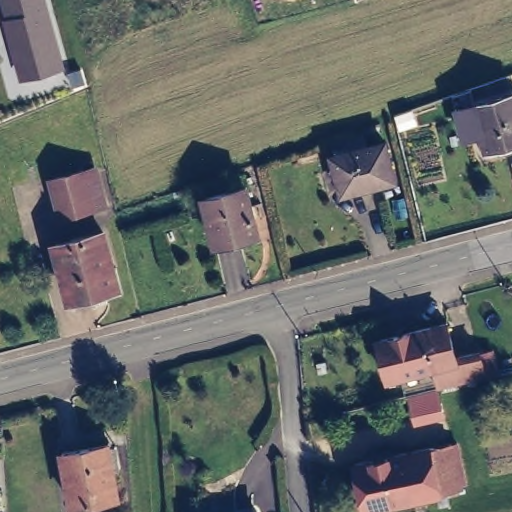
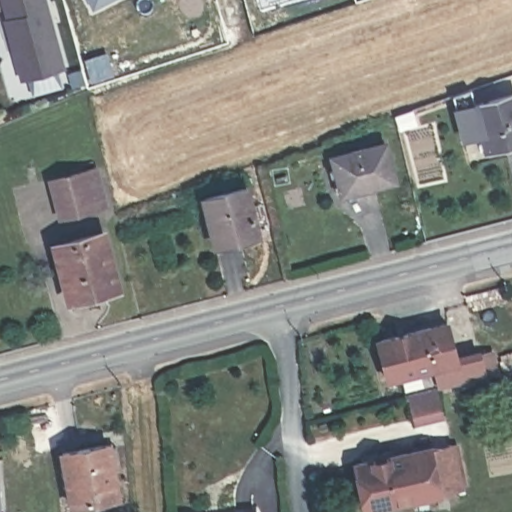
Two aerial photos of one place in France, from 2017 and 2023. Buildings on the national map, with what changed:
unchanged [(21,80),(0,0),(48,0),(66,66),(21,80)]
unchanged [(512,95),(512,141),(483,149),(471,106),(512,95)]
unchanged [(336,170),(342,167),(340,158),(390,142),(401,180),(351,195),(349,190),(342,192),(336,170)]
unchanged [(83,171),(91,210),(60,216),(51,180),(83,171)]
unchanged [(247,186),(261,233),(219,245),(205,197),(247,186)]
unchanged [(102,234),(111,266),(117,265),(124,291),(106,295),(104,290),(70,297),(57,245),(102,234)]
unchanged [(486,369),(470,372),(434,381),(429,365),(390,375),(381,336),(450,319),(459,350),(465,349),(467,352),(481,349),(486,369)]
unchanged [(458,440),(468,485),(402,500),(403,503),(394,505),(392,501),(372,505),(363,460),(458,440)]
unchanged [(106,445),(107,452),(116,451),(119,468),(111,470),(116,497),(72,506),(62,453),(106,445)]

